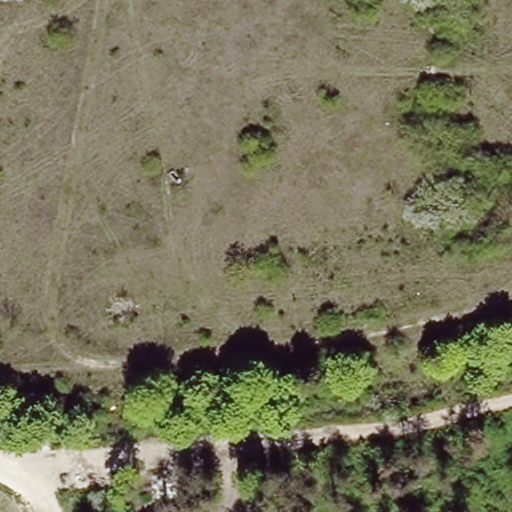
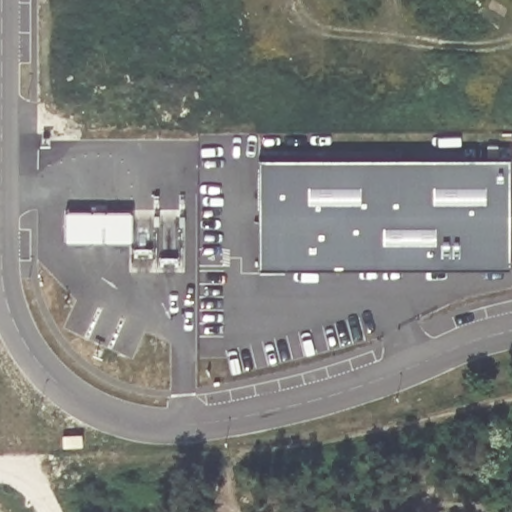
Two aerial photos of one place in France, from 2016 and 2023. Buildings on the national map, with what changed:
new [(511,267),(260,267),(260,159),(511,157),(511,267)]
new [(135,242),(66,241),(66,209),(134,210),(135,242)]
demolished [(106,300),(132,296),(135,318),(114,321),(106,300)]
new [(82,435),(82,446),(64,447),(63,436),(82,435)]

